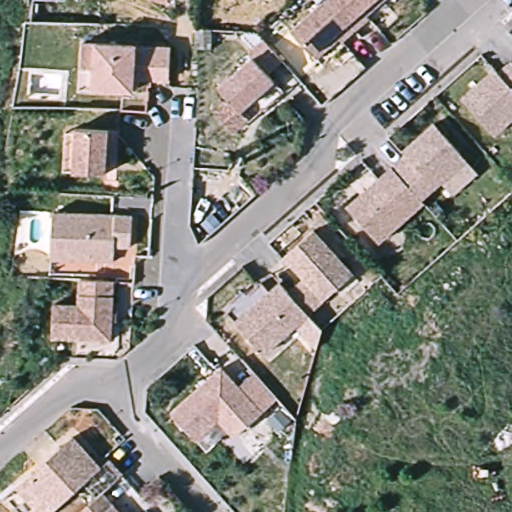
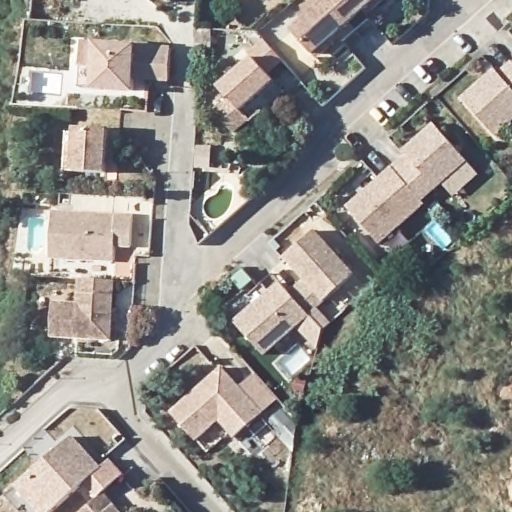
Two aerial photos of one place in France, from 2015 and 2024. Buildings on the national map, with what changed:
unchanged [(162,0),(179,0),(178,4),(162,0)]
unchanged [(391,0),(369,20),(371,23),(357,36),(329,4),(334,0),(391,0)]
unchanged [(344,48),(341,45),(319,65),(293,36),(329,4),(357,36),(344,48)]
unchanged [(274,75),(281,82),(247,112),(255,120),(245,130),(225,108),(236,99),(227,89),(259,59),(255,55),(271,41),(289,62),(274,75)]
unchanged [(136,85),(135,98),(82,95),(85,50),(172,55),(171,87),(136,85)]
unchanged [(501,136),(468,99),(501,70),(505,74),(512,67),(512,127),(501,136)]
unchanged [(412,155),(409,152),(440,125),(472,161),(427,201),(398,168),(412,155)]
unchanged [(79,134),(89,135),(89,130),(122,132),(119,175),(87,173),(77,173),(79,134)]
unchanged [(385,243),(353,208),(398,168),(427,201),(430,204),(385,243)]
unchanged [(139,218),(138,248),(122,247),(121,263),(58,259),(60,214),(139,218)]
unchanged [(296,294),(311,281),(290,258),(320,231),(359,275),(315,315),(296,294)]
unchanged [(270,355),(242,323),(287,283),(296,294),(315,315),(270,355)]
unchanged [(121,287),(118,346),(60,344),(62,304),(80,304),(81,285),(121,287)]
unchanged [(203,441),(178,414),(229,369),(247,389),(261,375),(269,384),(284,401),(269,414),(241,439),(236,433),(213,453),(203,441)]
unchanged [(102,497),(89,482),(54,512),(37,512),(39,510),(19,487),(74,438),(102,469),(111,461),(125,476),(105,494),(102,497)]
unchanged [(102,497),(105,494),(116,507),(120,512),(85,512),(102,497)]

